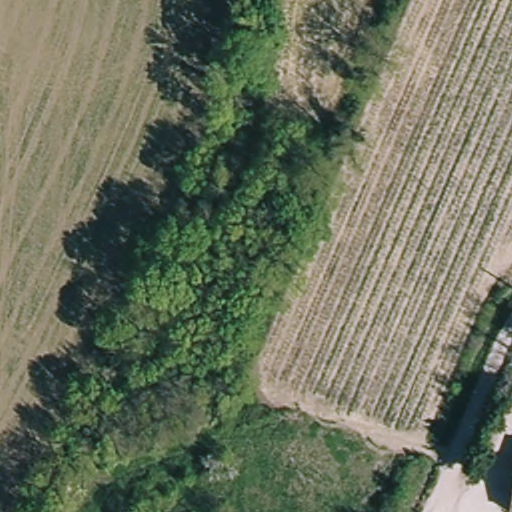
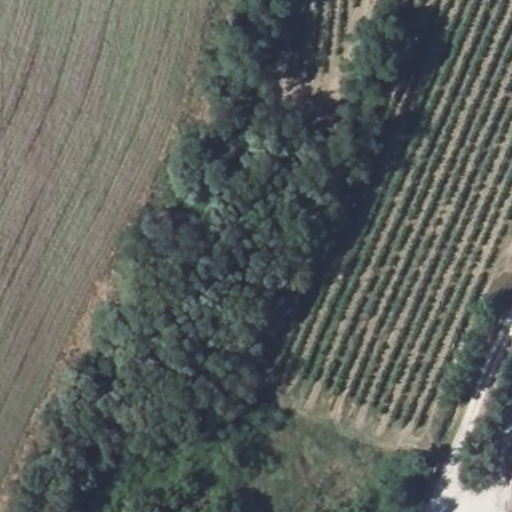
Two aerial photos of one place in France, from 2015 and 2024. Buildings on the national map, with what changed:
unchanged [(512,491),(512,512),(508,512),(512,491)]

